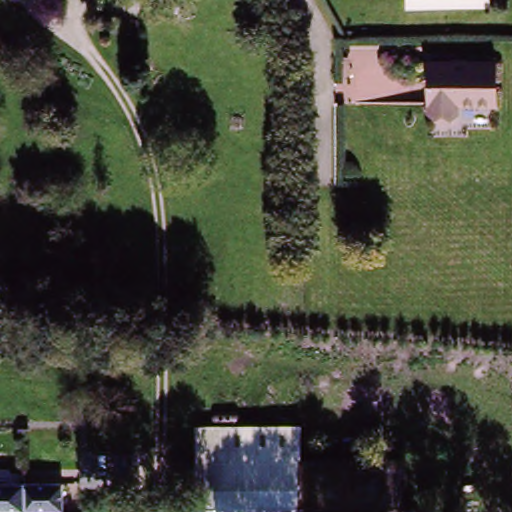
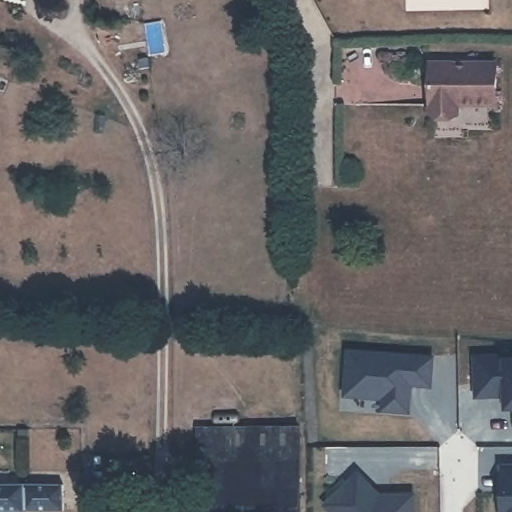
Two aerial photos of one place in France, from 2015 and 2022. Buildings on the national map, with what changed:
unchanged [(459,96),(458,106),(431,104),(431,53),(494,56),(494,98),(459,96)]
new [(430,382),(409,381),(408,408),(382,406),(383,395),(344,391),(347,347),(432,354),(430,382)]
new [(502,401),(502,392),(472,393),(471,354),(502,353),(502,358),(512,358),(512,405),(502,405),(502,401)]
unchanged [(300,472),(220,473),(197,473),(197,429),(299,428),(299,459),(300,472)]
unchanged [(29,437),(18,436),(19,429),(29,429),(29,437)]
new [(499,491),(499,465),(504,465),(512,465),(512,512),(499,512),(499,491)]
unchanged [(220,473),(300,472),(301,512),(221,512),(220,473)]
new [(320,502),(351,472),(372,492),(384,493),(409,493),(409,512),(330,512),(320,502)]
unchanged [(197,473),(220,473),(221,512),(197,512),(197,473)]
unchanged [(0,486),(66,485),(68,512),(67,512),(0,512),(0,486)]

